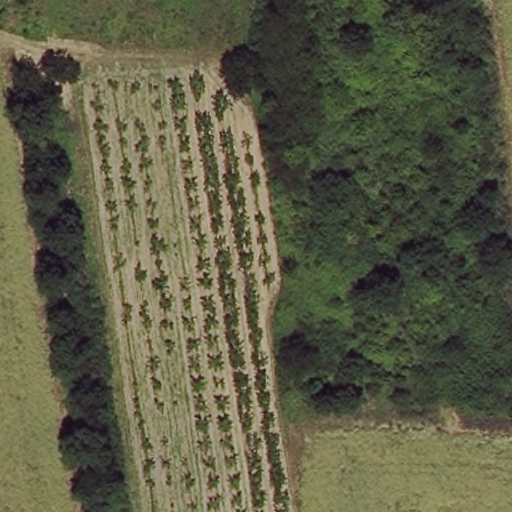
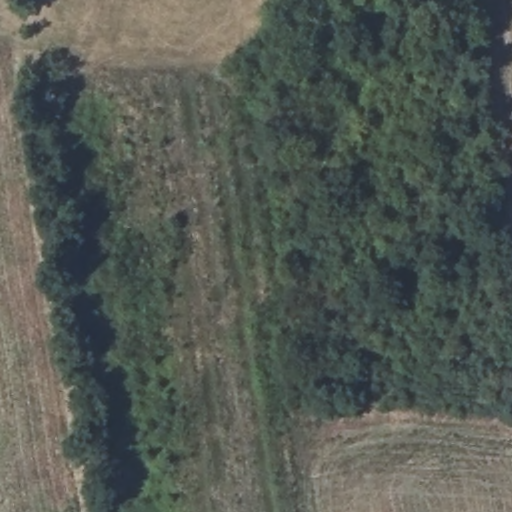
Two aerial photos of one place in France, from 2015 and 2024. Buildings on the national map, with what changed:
[]

